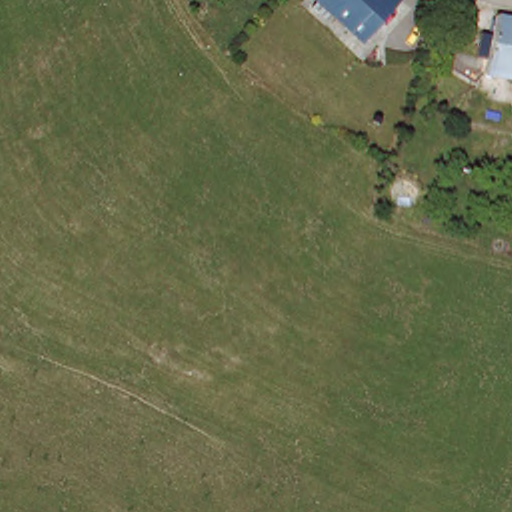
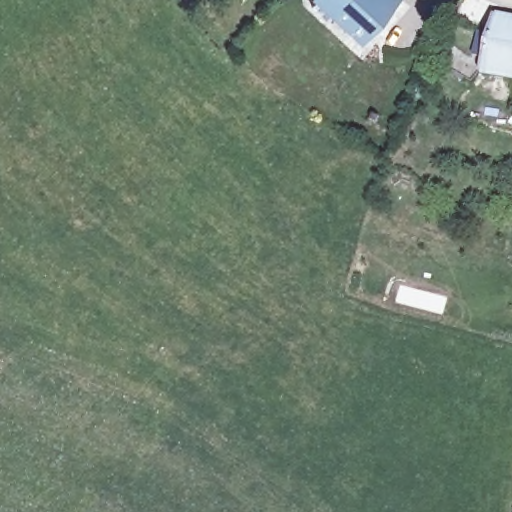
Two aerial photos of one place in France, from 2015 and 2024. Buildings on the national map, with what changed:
unchanged [(325,0),(395,0),(362,34),(325,0)]
unchanged [(512,72),(491,70),(492,52),(482,51),(485,31),(495,32),(498,12),(512,13),(512,72)]

